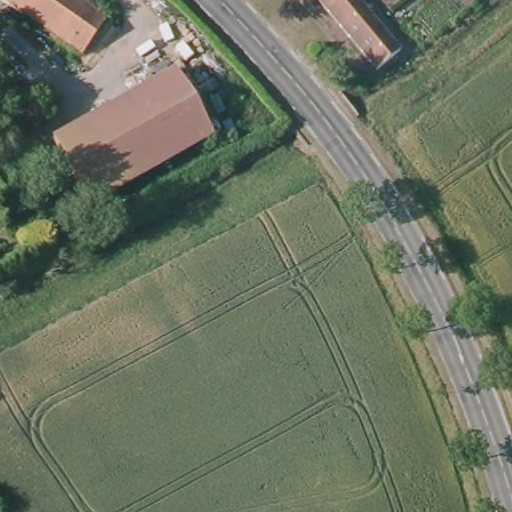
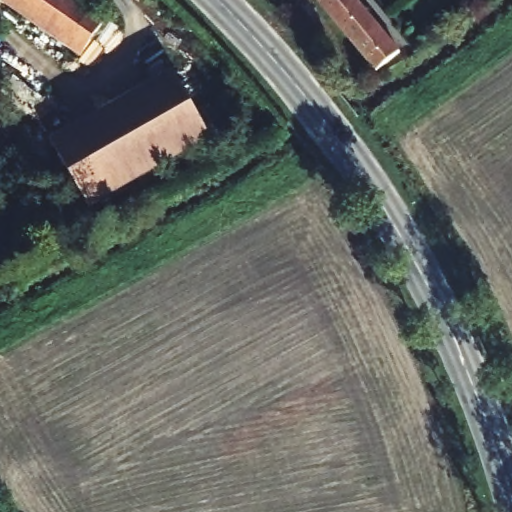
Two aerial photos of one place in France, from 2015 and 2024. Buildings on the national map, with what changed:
unchanged [(111,25),(86,61),(85,61),(82,59),(0,2),(0,0),(74,0),(111,25)]
unchanged [(349,50),(333,31),(328,25),(307,0),(346,0),(352,6),(372,31),(393,56),(370,76),(349,50)]
unchanged [(173,72),(210,138),(88,207),(51,142),(173,72)]

